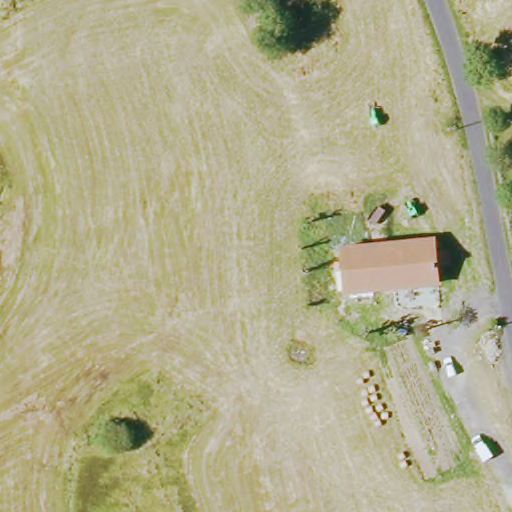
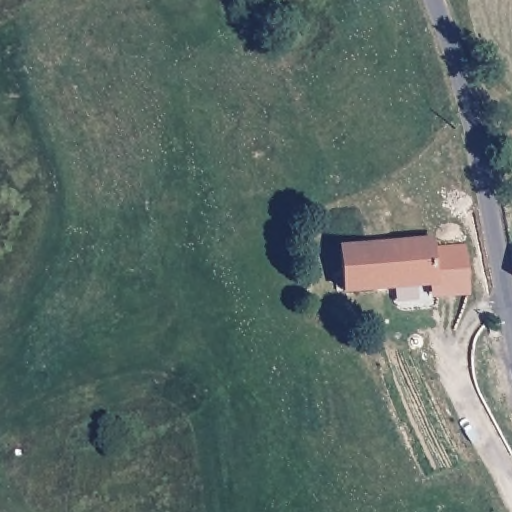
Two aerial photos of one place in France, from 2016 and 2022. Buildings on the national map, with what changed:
unchanged [(338,250),(429,238),(431,253),(444,252),(446,267),(437,268),(439,283),(348,295),(346,295),(345,293),(338,250)]

